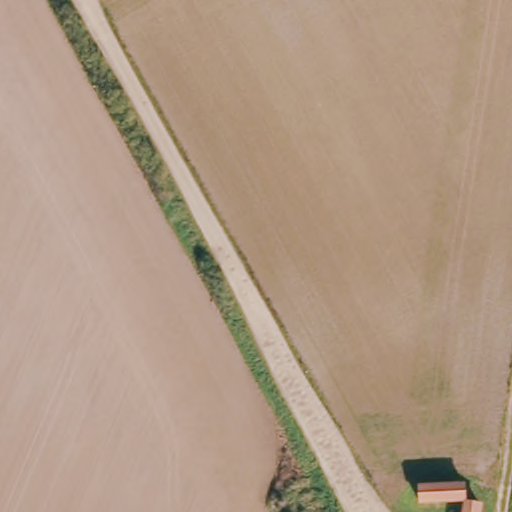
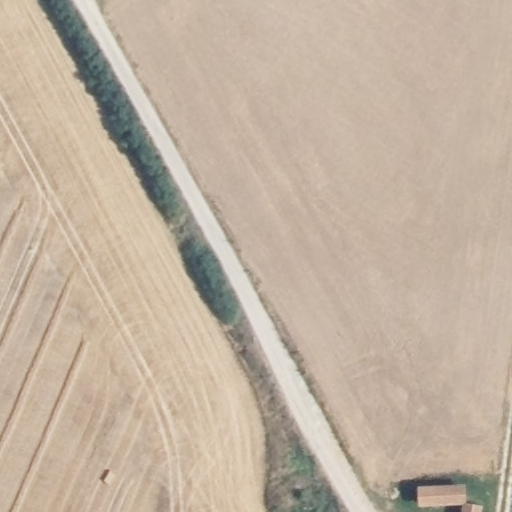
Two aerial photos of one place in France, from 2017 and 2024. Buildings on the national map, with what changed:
unchanged [(464,484),(466,497),(419,501),(419,488),(464,484)]
unchanged [(479,512),(467,512),(469,500),(481,501),(479,512)]

